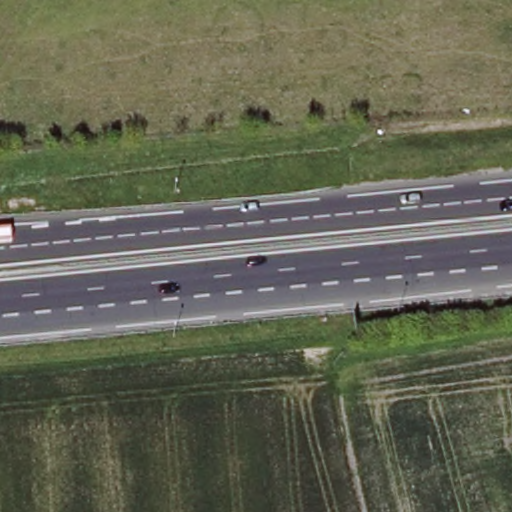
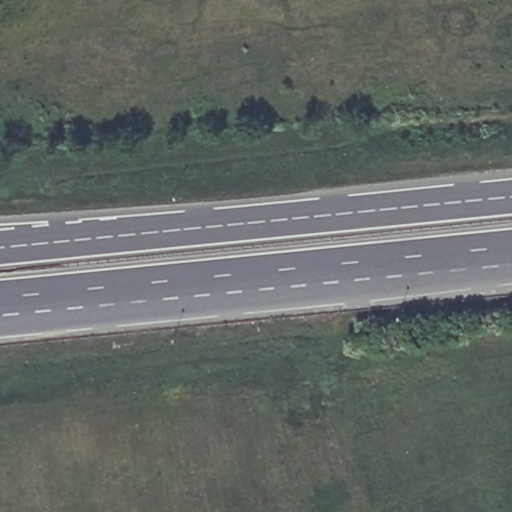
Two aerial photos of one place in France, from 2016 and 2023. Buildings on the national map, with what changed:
[]

